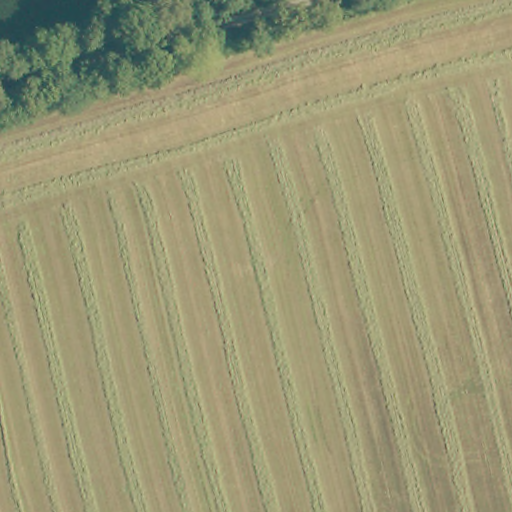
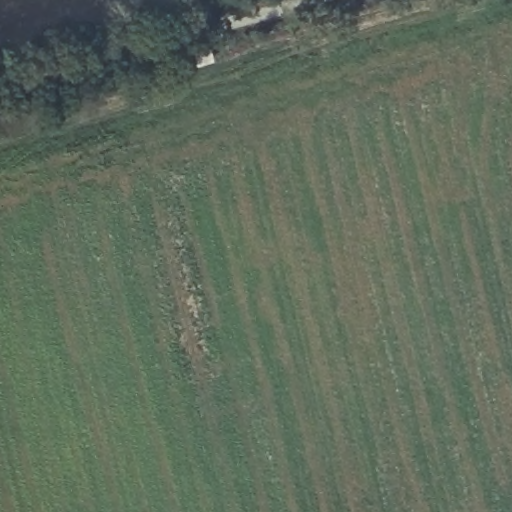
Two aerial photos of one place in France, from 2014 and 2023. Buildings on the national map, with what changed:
unchanged [(189,77),(184,63),(204,56),(209,69),(212,72),(193,79),(189,77)]

